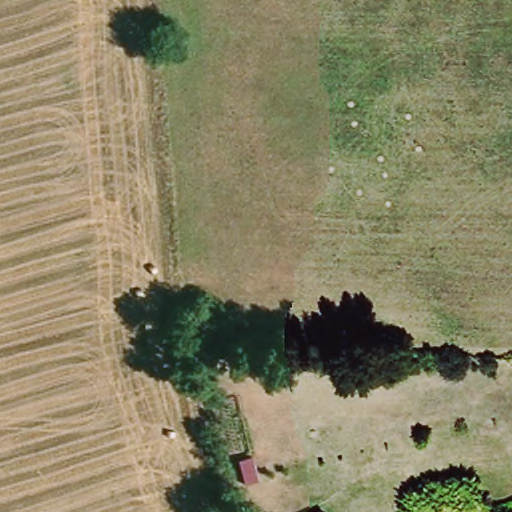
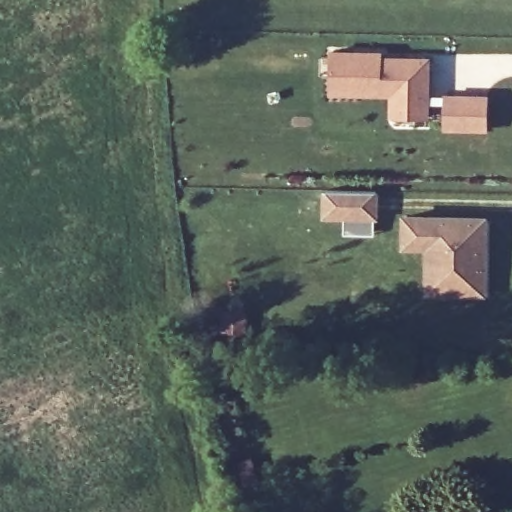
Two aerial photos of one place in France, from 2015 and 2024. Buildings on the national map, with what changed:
new [(381,55),(430,57),(428,119),(391,119),(391,95),(329,96),(330,50),(381,51),(381,55)]
new [(445,94),(488,95),(487,132),(443,131),(445,94)]
new [(326,190),(376,191),(376,216),(326,215),(326,190)]
new [(427,246),(403,245),(404,215),(485,217),(482,293),(458,293),(426,292),(427,268),(427,246)]
unchanged [(316,512),(312,512),(316,510),(316,512)]

